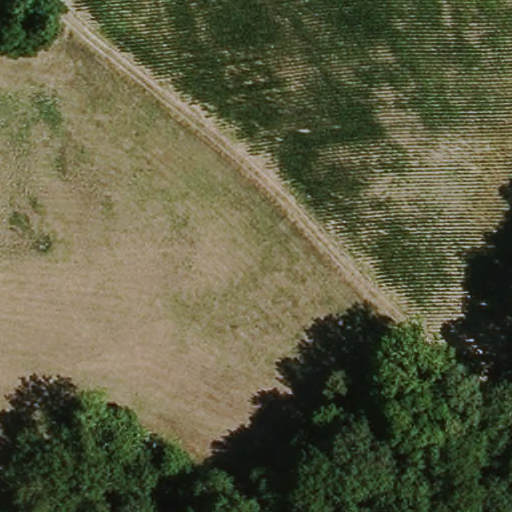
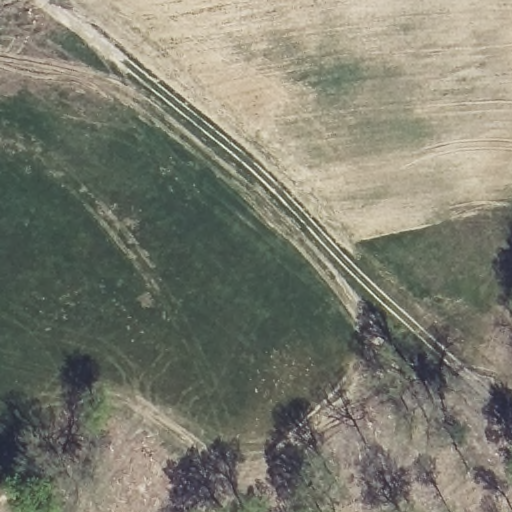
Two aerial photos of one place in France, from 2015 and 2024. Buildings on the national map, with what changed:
[]

